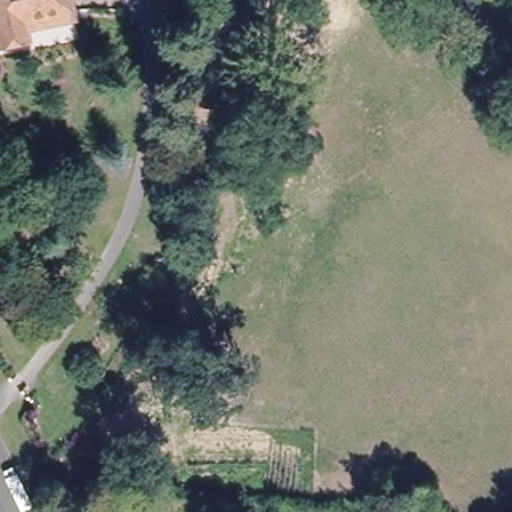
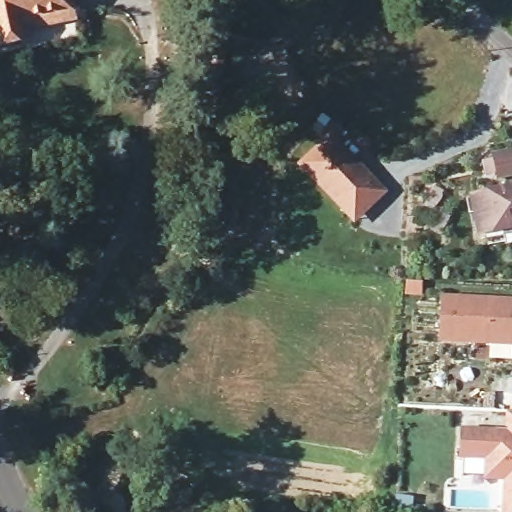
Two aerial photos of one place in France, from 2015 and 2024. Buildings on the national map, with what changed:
unchanged [(33,41),(0,46),(0,0),(74,0),(76,11),(78,19),(31,28),(33,41)]
new [(344,211),(301,166),(331,138),(351,159),(362,171),(384,194),(368,209),(354,222),(344,211)]
new [(483,243),(481,235),(475,237),(468,200),(512,192),(512,237),(483,243)]
new [(438,342),(439,301),(512,304),(512,345),(508,345),(489,344),(438,342)]
new [(494,436),(494,434),(506,434),(507,414),(512,415),(512,512),(503,512),(504,484),(484,483),(485,463),(459,462),(460,435),(494,436)]

